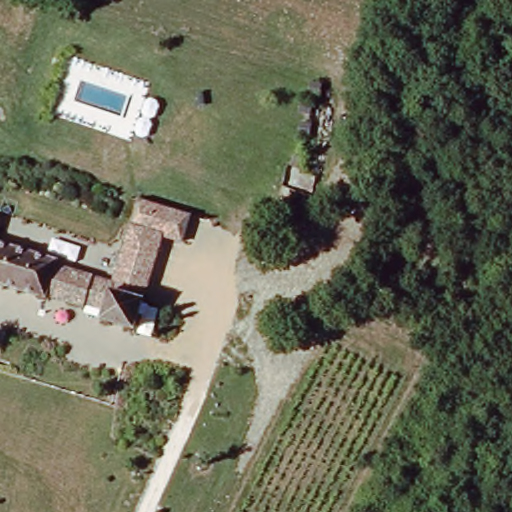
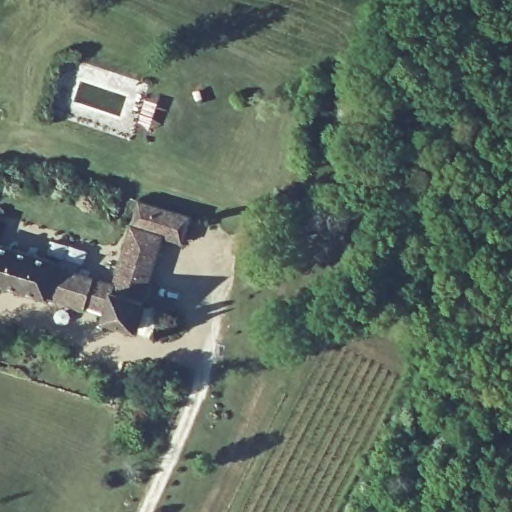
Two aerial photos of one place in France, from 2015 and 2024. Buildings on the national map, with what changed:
unchanged [(142,202),(192,216),(183,243),(163,236),(145,299),(114,290),(116,283),(142,202)]
unchanged [(0,282),(0,242),(8,245),(1,282),(0,282)]
unchanged [(107,309),(87,303),(86,305),(47,293),(47,296),(1,282),(8,245),(59,260),(57,265),(116,283),(114,290),(145,299),(137,325),(136,328),(105,318),(105,315),(107,309)]

